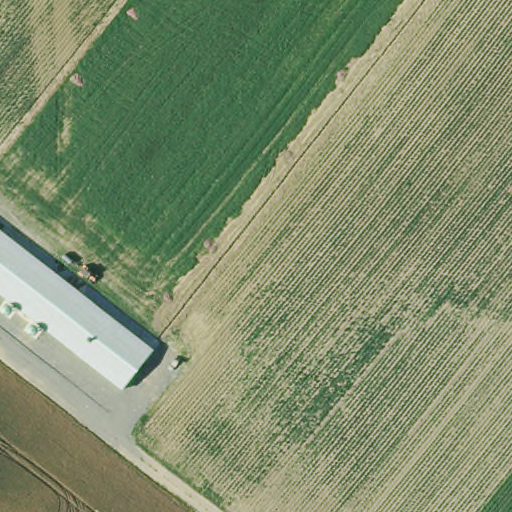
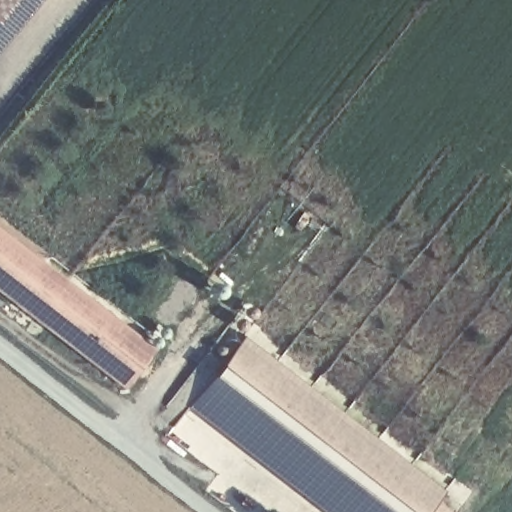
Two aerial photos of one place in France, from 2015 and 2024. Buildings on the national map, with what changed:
new [(0,0),(42,0),(0,54),(0,0)]
unchanged [(0,293),(0,228),(154,348),(124,390),(0,293)]
new [(244,336),(443,492),(434,501),(450,512),(325,512),(191,406),(244,336)]

